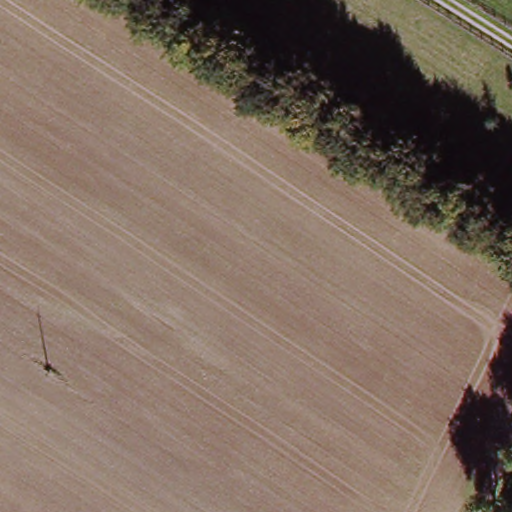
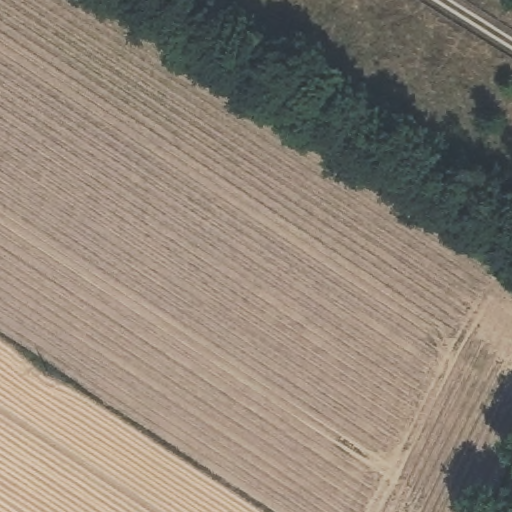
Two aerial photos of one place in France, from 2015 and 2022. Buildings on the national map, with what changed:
[]

